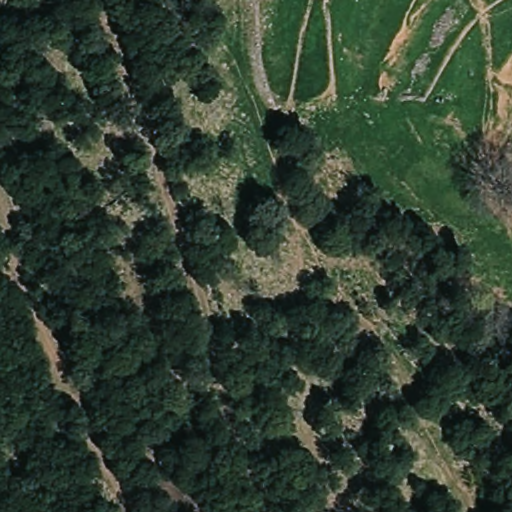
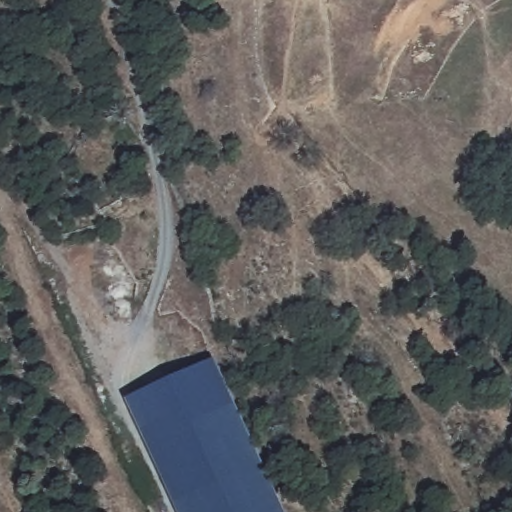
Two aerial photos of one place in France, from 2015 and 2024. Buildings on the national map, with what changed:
new [(285,512),(178,512),(128,402),(216,359),(285,512)]

